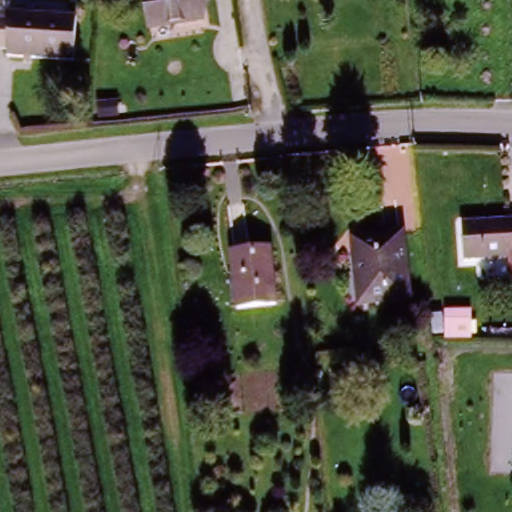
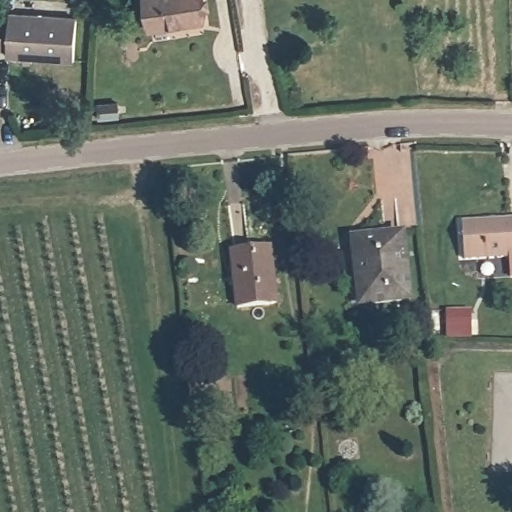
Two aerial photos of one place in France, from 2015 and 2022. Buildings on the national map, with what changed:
unchanged [(153,28),(149,0),(201,0),(204,21),(153,28)]
unchanged [(13,12),(79,15),(77,56),(10,53),(10,48),(0,48),(0,17),(12,17),(13,12)]
unchanged [(462,225),(512,222),(512,281),(508,281),(507,258),(463,261),(462,225)]
unchanged [(384,301),(384,308),(371,311),(370,305),(365,302),(359,235),(405,230),(414,299),(384,301)]
unchanged [(240,308),(234,251),(273,248),(279,304),(240,308)]
unchanged [(444,336),(444,306),(472,306),(474,333),(444,336)]

